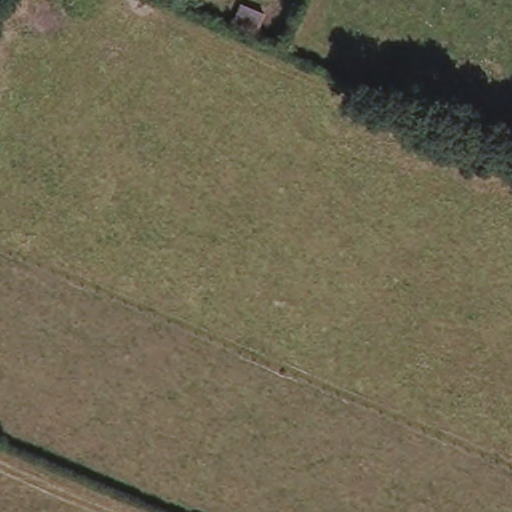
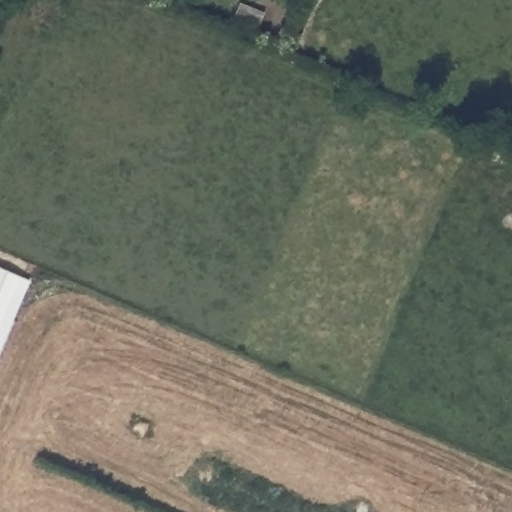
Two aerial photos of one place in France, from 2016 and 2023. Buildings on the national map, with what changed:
unchanged [(264,10),(251,39),(225,28),(239,0),(264,10)]
new [(0,268),(26,279),(0,338),(0,268)]
new [(0,353),(0,343),(4,344),(0,353)]

